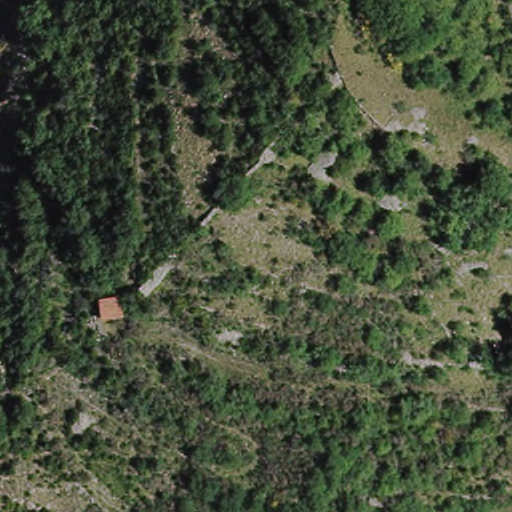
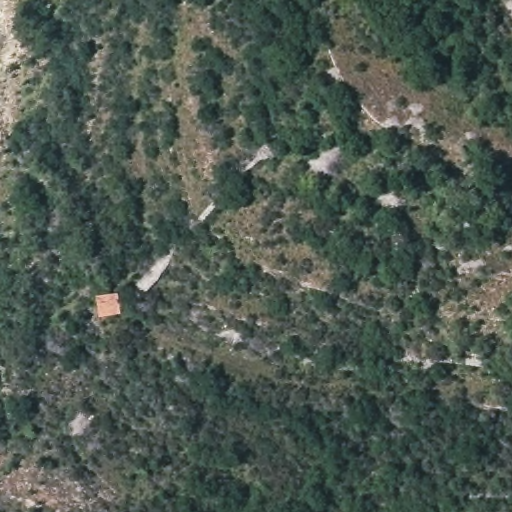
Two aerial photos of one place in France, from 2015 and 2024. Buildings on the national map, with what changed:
unchanged [(120,318),(97,322),(96,295),(118,294),(120,318)]

